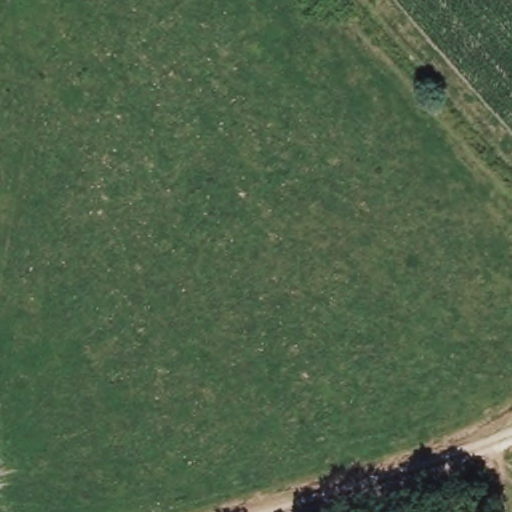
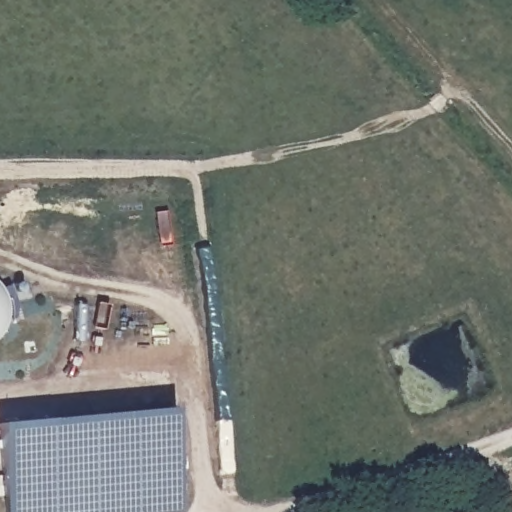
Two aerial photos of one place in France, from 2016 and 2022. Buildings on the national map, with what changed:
new [(182,512),(5,512),(0,458),(0,424),(172,408),(182,512)]

